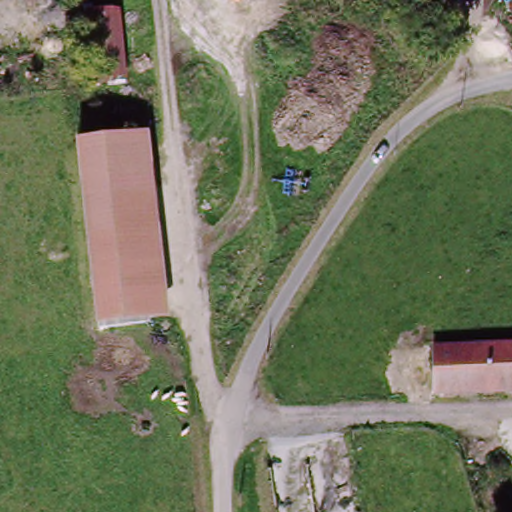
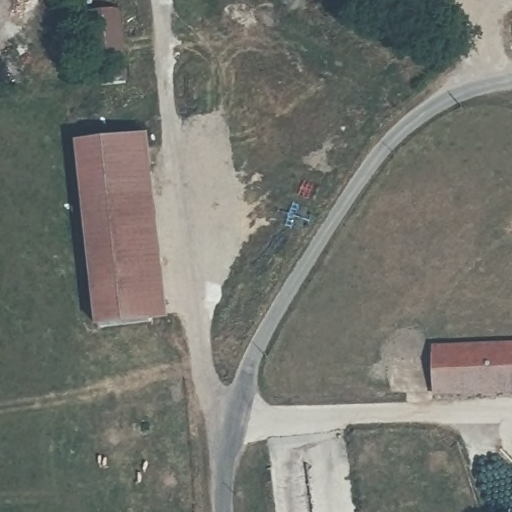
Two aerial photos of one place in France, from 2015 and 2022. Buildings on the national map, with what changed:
unchanged [(85,11),(123,9),(130,89),(90,91),(85,11)]
unchanged [(148,138),(172,324),(98,330),(78,144),(148,138)]
unchanged [(430,344),(512,342),(512,387),(432,389),(430,344)]

